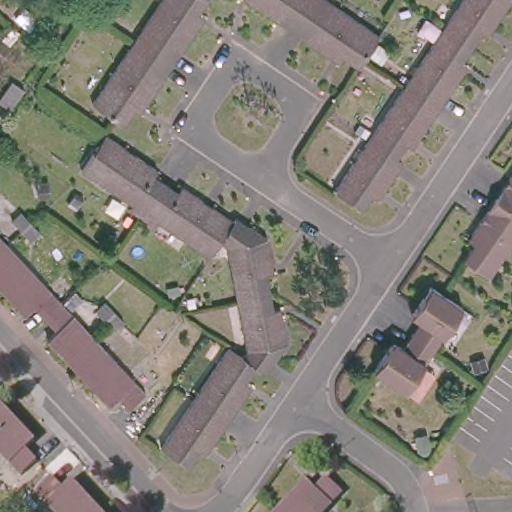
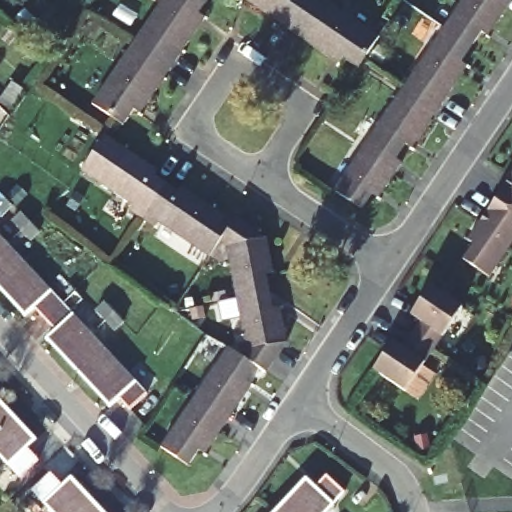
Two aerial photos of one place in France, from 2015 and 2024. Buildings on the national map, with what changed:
unchanged [(132,110),(122,125),(115,120),(90,105),(160,0),(207,0),(198,13),(205,17),(201,24),(172,66),(143,108),(140,114),(132,110)]
unchanged [(328,59),(285,31),(242,3),(238,0),(245,0),(322,0),(375,35),(365,49),(353,66),(338,56),(333,63),(328,59)]
unchanged [(367,209),(337,190),(466,0),(512,0),(512,5),(496,29),(492,35),(486,30),(475,46),(465,61),(473,66),(470,71),(445,108),(421,142),(417,148),(410,144),(400,158),(407,163),(388,191),(384,197),(377,194),(367,209)]
unchanged [(12,88),(22,95),(9,115),(0,106),(12,88)]
unchanged [(185,465),(156,447),(224,346),(237,355),(242,348),(220,246),(213,241),(205,256),(155,222),(150,226),(125,210),(129,204),(76,170),(99,136),(152,170),(150,175),(161,183),(172,191),(176,187),(228,221),(231,216),(261,237),(267,263),(268,271),(261,272),(265,290),(268,308),(275,306),(277,314),(282,340),(261,371),(251,365),(241,379),(248,383),(243,390),(205,449),(200,456),(193,451),(185,465)]
unchanged [(468,231),(512,167),(512,222),(510,225),(512,226),(512,234),(485,274),(460,256),(470,241),(464,237),(468,231)]
unchanged [(50,222),(39,231),(31,222),(22,212),(32,203),(41,213),(48,221),(50,222)]
unchanged [(0,243),(15,259),(0,273),(0,243)]
unchanged [(58,305),(41,321),(28,308),(19,316),(0,296),(0,273),(15,259),(58,305)]
unchanged [(398,343),(400,344),(408,331),(417,318),(415,317),(407,312),(412,305),(428,282),(438,289),(460,304),(402,390),(370,368),(387,342),(390,338),(398,343)]
unchanged [(126,325),(108,305),(117,296),(136,315),(126,325)]
unchanged [(58,305),(100,350),(74,375),(42,341),(51,332),(41,321),(58,305)]
unchanged [(100,350),(142,395),(125,410),(115,400),(105,407),(74,375),(100,350)]
unchanged [(0,404),(3,407),(0,410),(0,404)]
unchanged [(34,440),(26,448),(37,461),(19,478),(0,458),(0,410),(3,407),(34,440)]
unchanged [(276,508),(307,475),(315,482),(327,470),(345,486),(320,512),(280,512),(276,508)]
unchanged [(33,493),(51,476),(61,487),(70,480),(100,512),(51,512),(33,493)]
unchanged [(280,512),(272,512),(276,508),(280,512)]

